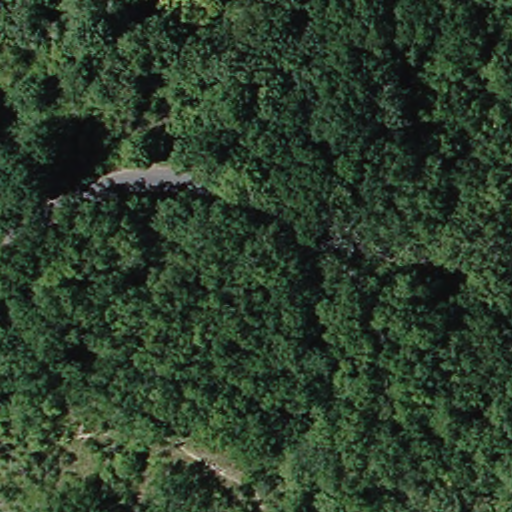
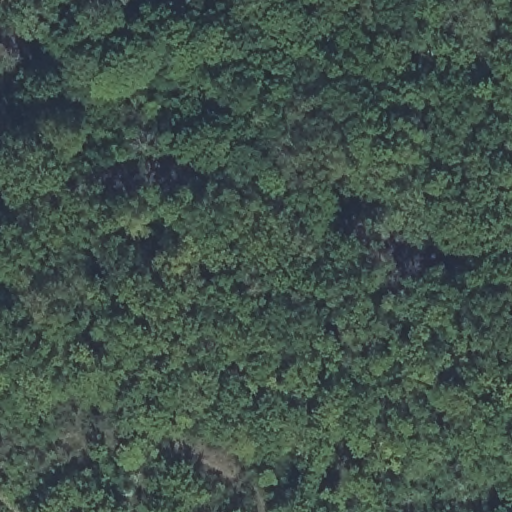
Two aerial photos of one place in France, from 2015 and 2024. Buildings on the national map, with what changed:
unchanged [(70,14),(44,20),(40,10),(67,3),(70,14)]

